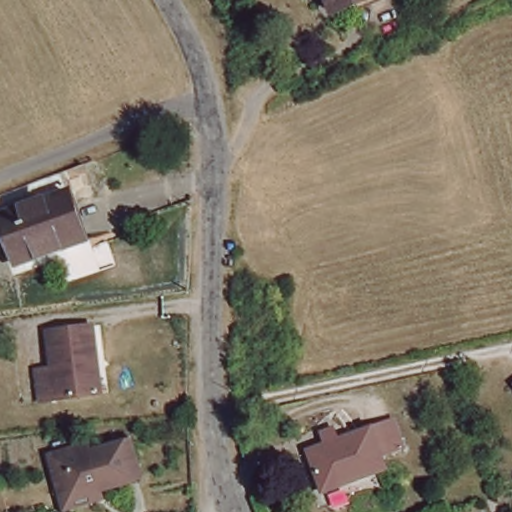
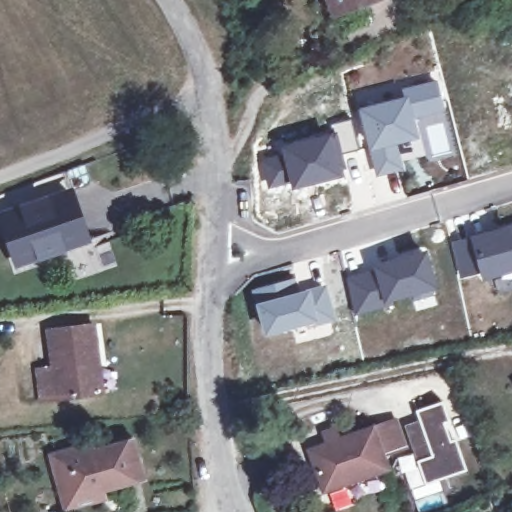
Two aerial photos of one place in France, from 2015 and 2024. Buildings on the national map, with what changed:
unchanged [(339,21),(331,0),(382,0),(384,3),(339,21)]
new [(438,79),(444,111),(415,119),(407,94),(403,95),(401,87),(438,79)]
new [(403,95),(407,94),(415,119),(421,139),(401,144),(404,171),(375,177),(357,106),(403,95)]
new [(258,156),(280,150),(279,146),(334,129),(332,124),(351,119),(358,149),(342,153),(347,173),(291,189),(289,183),(266,189),(258,156)]
unchanged [(80,245),(14,269),(0,230),(0,217),(63,195),(80,245)]
new [(449,241),(468,235),(512,222),(512,272),(481,282),(479,274),(459,279),(449,241)]
new [(394,256),(425,247),(437,290),(387,304),(388,307),(354,316),(344,275),(394,256)]
new [(336,320),(263,335),(254,302),(250,288),(294,277),(298,289),(326,282),(336,320)]
unchanged [(90,394),(38,401),(34,370),(50,367),(45,330),(90,325),(95,363),(99,393),(90,394)]
new [(319,490),(304,450),(321,444),(317,431),(329,427),(333,439),(368,427),(391,420),(402,416),(404,423),(418,418),(415,410),(443,402),(448,421),(444,422),(449,441),(454,439),(466,469),(424,484),(416,459),(411,446),(401,448),(378,457),(382,467),(319,490)]
demolished [(382,467),(319,490),(304,450),(321,444),(317,431),(329,427),(333,439),(368,427),(378,457),(382,467)]
unchanged [(68,511),(63,495),(51,455),(92,444),(94,451),(134,440),(144,477),(103,489),(106,500),(68,511)]

